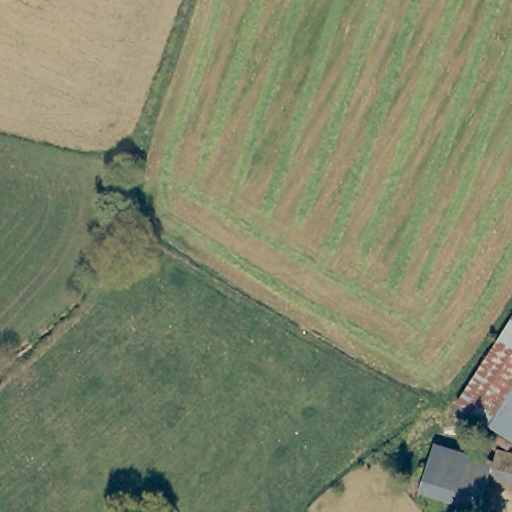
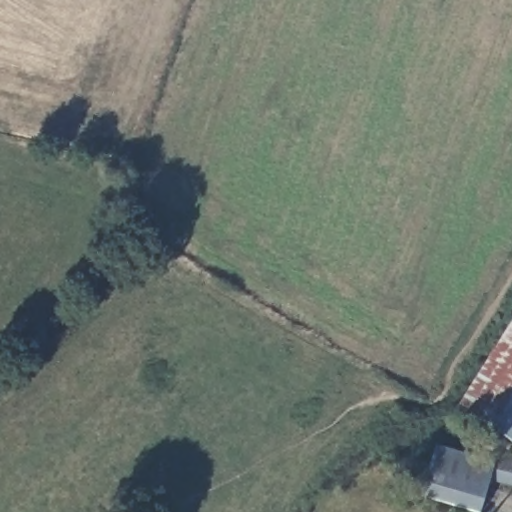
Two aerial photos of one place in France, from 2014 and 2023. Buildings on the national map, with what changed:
unchanged [(463,411),(512,334),(512,441),(512,442),(463,411)]
unchanged [(478,512),(420,495),(434,446),(494,463),(491,474),(490,479),(478,512)]
unchanged [(491,474),(498,451),(512,455),(512,486),(490,479),(491,474)]

